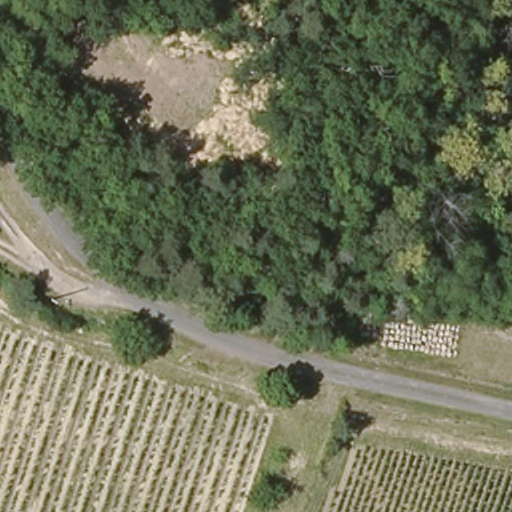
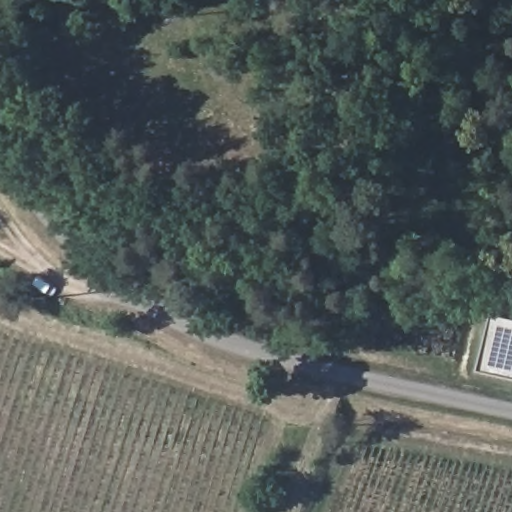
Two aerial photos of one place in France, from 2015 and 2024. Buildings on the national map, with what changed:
new [(483,370),(497,309),(512,312),(512,376),(483,370)]

